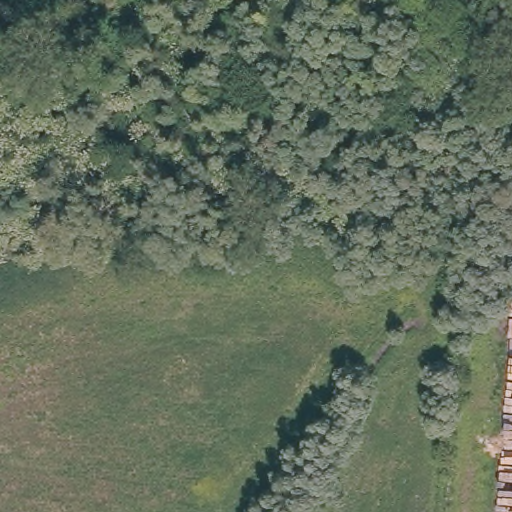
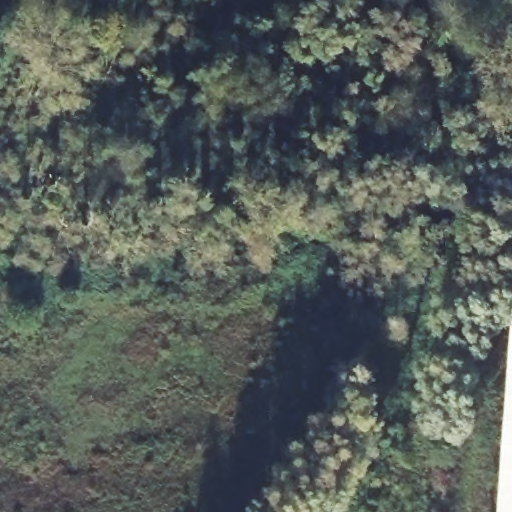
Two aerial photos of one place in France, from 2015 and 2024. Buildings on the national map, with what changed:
new [(512,306),(512,512),(496,512),(512,306)]

